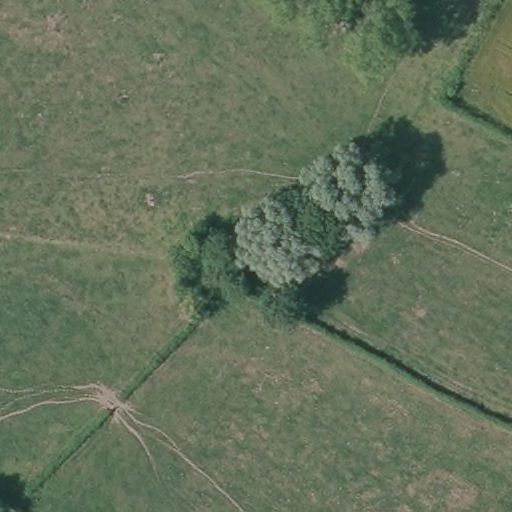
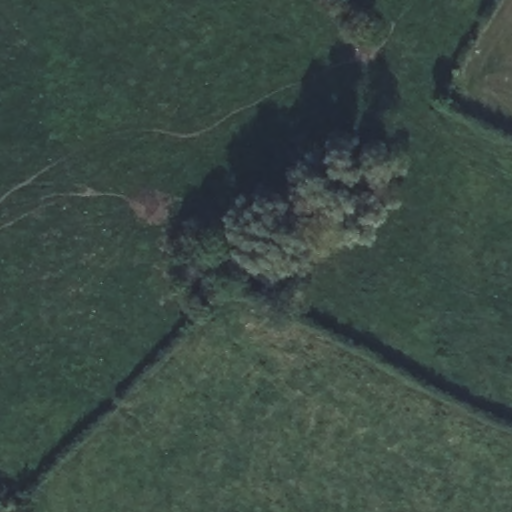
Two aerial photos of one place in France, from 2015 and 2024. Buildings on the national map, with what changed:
[]

